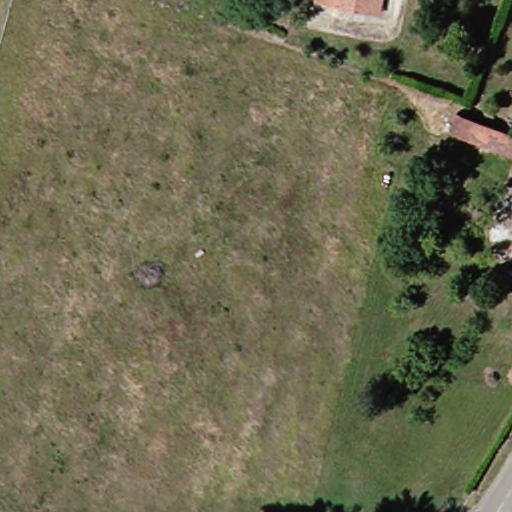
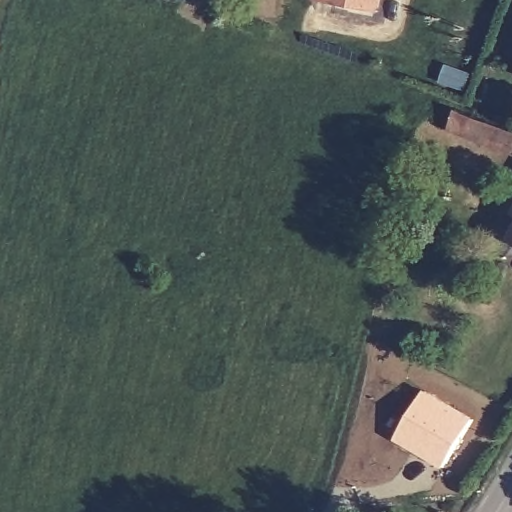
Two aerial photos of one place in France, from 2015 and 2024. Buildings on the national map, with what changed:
unchanged [(369,13),(360,11),(321,5),(322,0),(371,0),(369,13)]
unchanged [(512,131),(512,155),(456,133),(462,111),(512,131)]
new [(445,466),(398,438),(428,388),(478,417),(445,466)]

